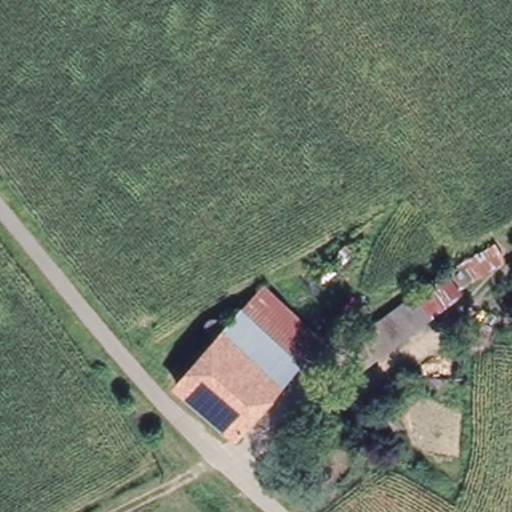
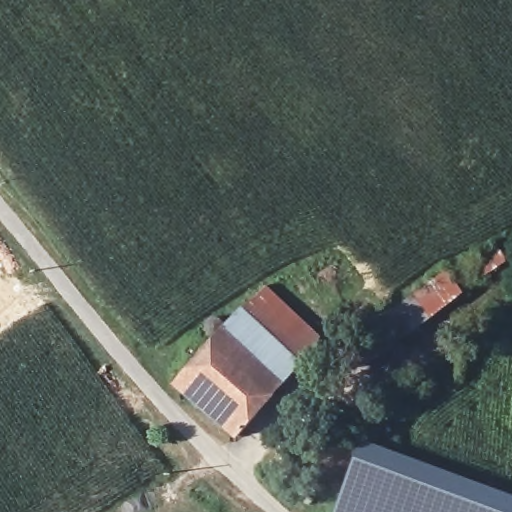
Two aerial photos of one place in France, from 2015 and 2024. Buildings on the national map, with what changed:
unchanged [(453,267),(489,246),(500,239),(500,240),(511,256),(468,286),(453,267)]
unchanged [(470,288),(438,315),(374,362),(355,338),(361,334),(452,266),(453,267),(468,286),(470,288)]
unchanged [(243,308),(265,285),(322,339),(304,363),(243,308)]
unchanged [(277,397),(253,424),(236,441),(173,387),(187,368),(243,308),(304,363),(277,397)]
new [(512,495),(512,512),(334,512),(362,439),(512,495)]

